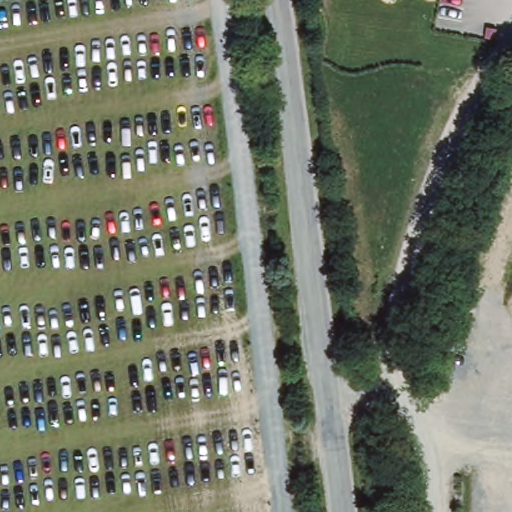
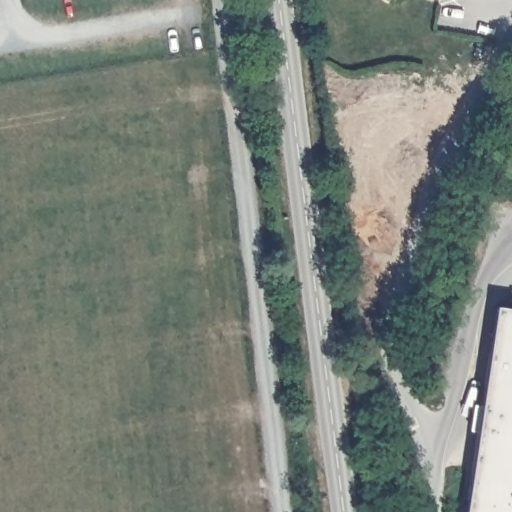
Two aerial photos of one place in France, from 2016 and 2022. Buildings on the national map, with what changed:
new [(492,303),(512,306),(512,512),(457,512),(492,303)]

